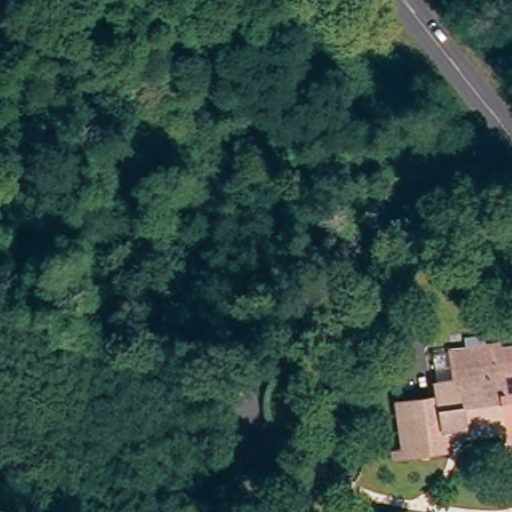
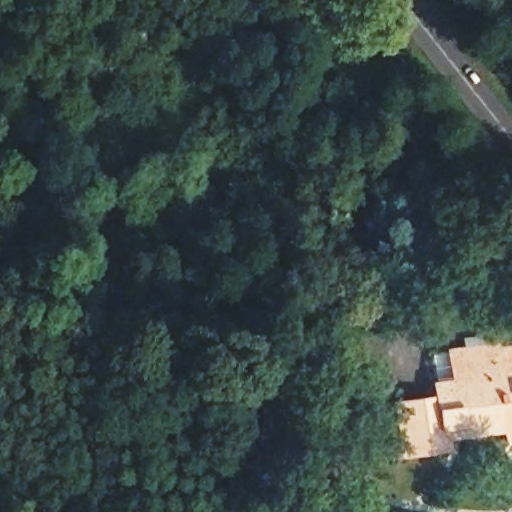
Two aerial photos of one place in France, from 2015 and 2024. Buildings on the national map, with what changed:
unchanged [(504,431),(447,436),(450,455),(395,461),(390,405),(433,400),(430,387),(454,382),(449,353),(512,347),(512,455),(507,456),(504,431)]

